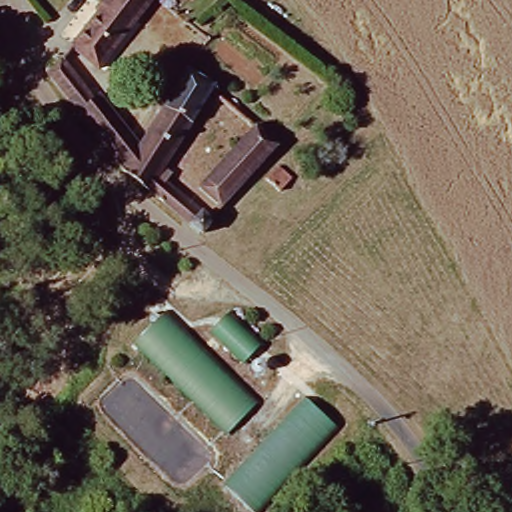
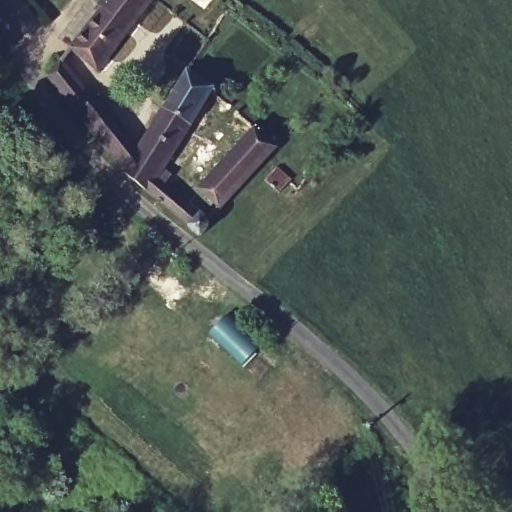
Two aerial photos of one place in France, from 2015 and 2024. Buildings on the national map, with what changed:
unchanged [(103,14),(96,8),(103,0),(145,0),(152,6),(96,70),(74,50),(103,14)]
unchanged [(97,98),(141,145),(215,65),(233,81),(152,177),(206,223),(195,237),(154,204),(111,164),(43,82),(60,63),(90,101),(97,98)]
unchanged [(203,197),(255,135),(271,150),(252,174),(221,212),(203,197)]
unchanged [(285,199),(273,212),(259,200),(271,186),(285,199)]
unchanged [(230,315),(270,355),(246,377),(208,339),(230,315)]
demolished [(136,352),(166,322),(252,409),(223,439),(136,352)]
demolished [(248,512),(223,486),(262,449),(310,404),(314,408),(340,438),(258,512),(248,512)]

